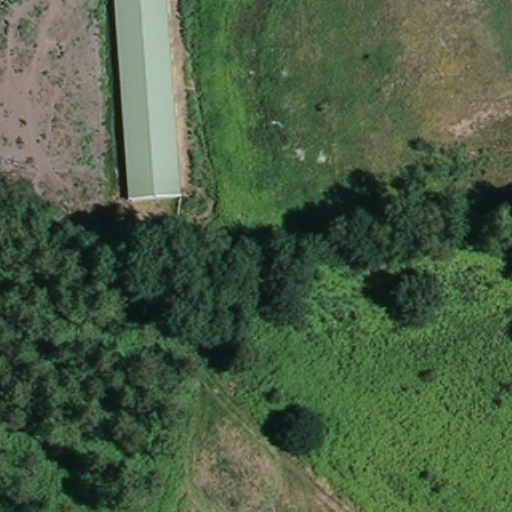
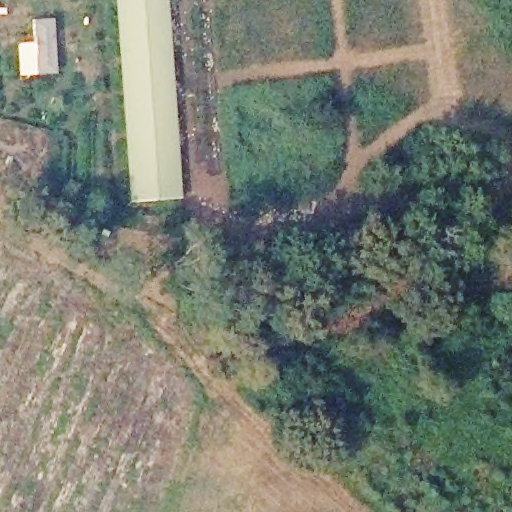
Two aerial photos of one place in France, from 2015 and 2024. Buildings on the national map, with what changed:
unchanged [(179,217),(132,221),(118,0),(166,0),(179,217)]
new [(32,44),(32,19),(51,18),(53,74),(17,76),(15,45),(32,44)]

